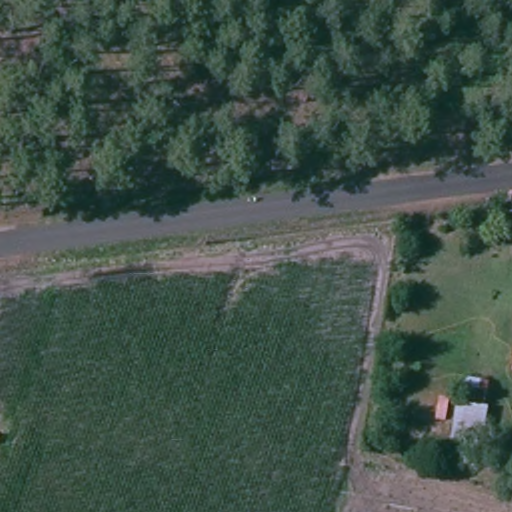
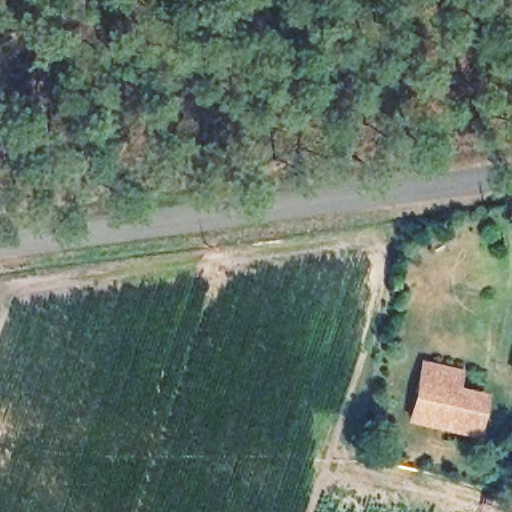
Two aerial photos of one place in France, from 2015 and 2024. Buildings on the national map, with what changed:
demolished [(471,336),(458,334),(461,304),(473,305),(471,336)]
unchanged [(512,377),(508,376),(512,359),(512,377)]
new [(465,370),(461,386),(491,393),(480,438),(407,422),(422,361),(465,370)]

